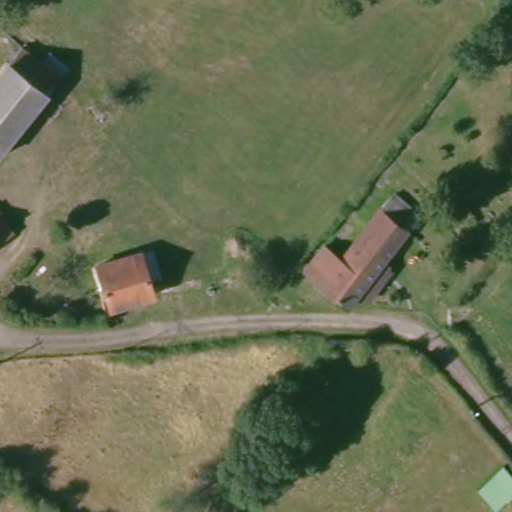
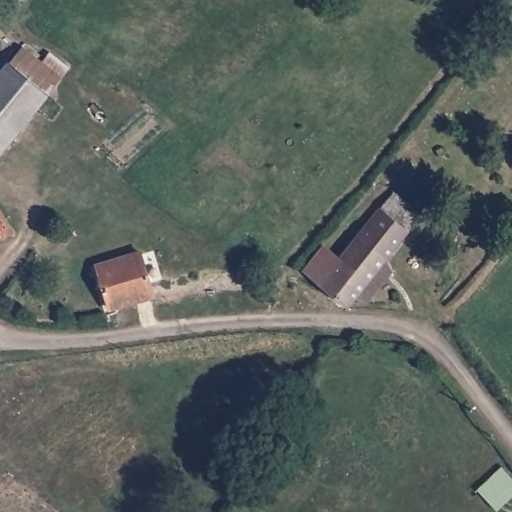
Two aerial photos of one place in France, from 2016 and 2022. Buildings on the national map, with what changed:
unchanged [(69,71),(52,93),(12,63),(30,39),(69,71)]
unchanged [(0,160),(0,78),(12,63),(52,93),(0,160)]
unchanged [(346,260),(383,209),(411,229),(351,310),(305,277),(330,247),(346,260)]
unchanged [(12,235),(0,244),(0,218),(12,235)]
unchanged [(148,294),(107,304),(99,267),(138,258),(148,294)]

